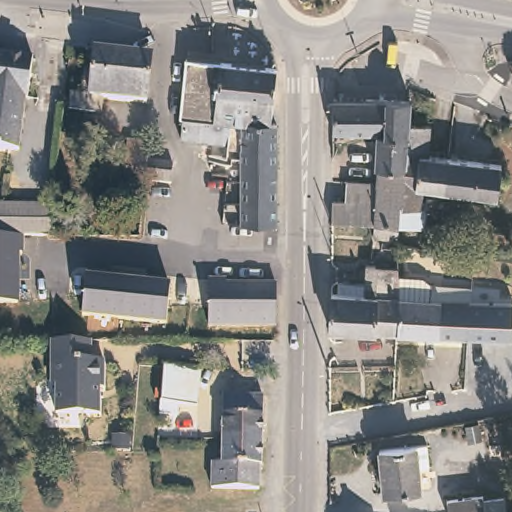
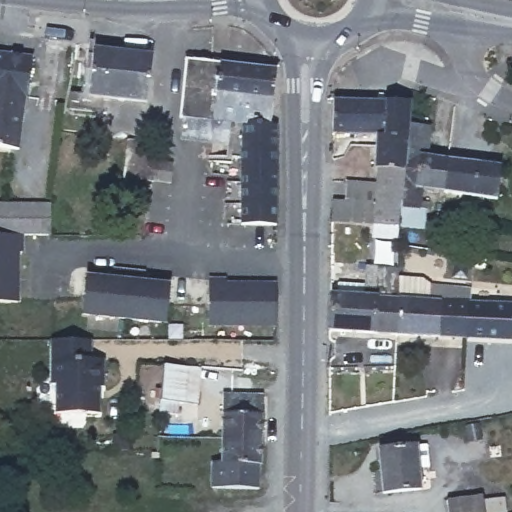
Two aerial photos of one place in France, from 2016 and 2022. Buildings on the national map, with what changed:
unchanged [(153,50),(149,98),(103,93),(101,108),(74,105),(74,91),(84,91),(89,56),(97,56),(99,45),(153,50)]
unchanged [(25,96),(22,95),(0,93),(0,51),(29,54),(25,96)]
unchanged [(240,220),(240,199),(241,154),(227,154),(227,142),(183,135),(185,113),(179,112),(184,55),(275,64),(270,121),(276,121),(275,200),(275,220),(240,220)]
unchanged [(16,146),(0,145),(0,93),(22,95),(16,146)]
unchanged [(377,237),(378,224),(332,222),(330,202),(342,202),(342,184),(357,184),(358,190),(363,190),(363,184),(374,184),(374,169),(371,168),(372,136),(330,134),(331,99),(410,102),(409,125),(404,208),(403,225),(402,238),(377,237)]
unchanged [(431,127),(429,156),(446,157),(444,190),(423,188),(422,209),(404,208),(409,125),(431,127)]
unchanged [(174,183),(144,180),(124,178),(126,141),(148,143),(146,161),(175,164),(174,183)]
unchanged [(504,162),(501,195),(444,190),(446,157),(504,162)]
unchanged [(0,234),(0,201),(51,201),(51,205),(50,234),(0,234)]
unchanged [(498,228),(498,242),(471,240),(472,227),(498,228)]
unchanged [(16,255),(18,302),(0,302),(0,234),(20,234),(21,254),(16,255)]
unchanged [(399,268),(399,277),(398,298),(397,334),(329,330),(329,294),(336,294),(337,282),(363,283),(364,266),(399,268)]
unchanged [(112,268),(144,271),(141,281),(172,284),(169,323),(84,314),(89,277),(109,279),(112,268)]
unchanged [(399,277),(418,278),(432,285),(468,288),(467,301),(466,338),(397,334),(398,298),(399,277)]
unchanged [(212,282),(275,283),(277,327),(210,327),(212,282)]
unchanged [(512,304),(512,332),(512,340),(466,338),(467,301),(512,304)]
unchanged [(90,337),(90,356),(104,356),(103,384),(89,384),(89,411),(47,410),(47,380),(50,376),(51,336),(90,337)]
unchanged [(197,366),(197,401),(177,401),(177,413),(160,412),(159,412),(160,389),(161,363),(197,366)]
unchanged [(222,391),(262,392),(260,434),(220,433),(222,391)]
unchanged [(260,434),(260,436),(260,459),(219,458),(220,433),(260,434)]
unchanged [(377,494),(374,451),(411,447),(420,446),(423,469),(413,470),(415,491),(377,494)]
unchanged [(219,458),(260,459),(259,485),(208,483),(209,458),(219,458)]
unchanged [(483,501),(503,498),(505,512),(446,512),(445,502),(482,496),(483,501)]

